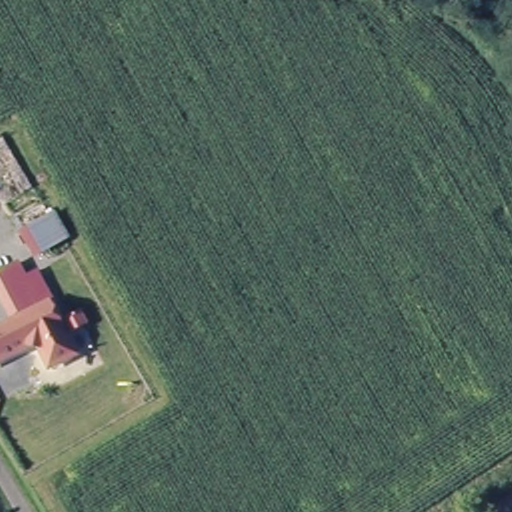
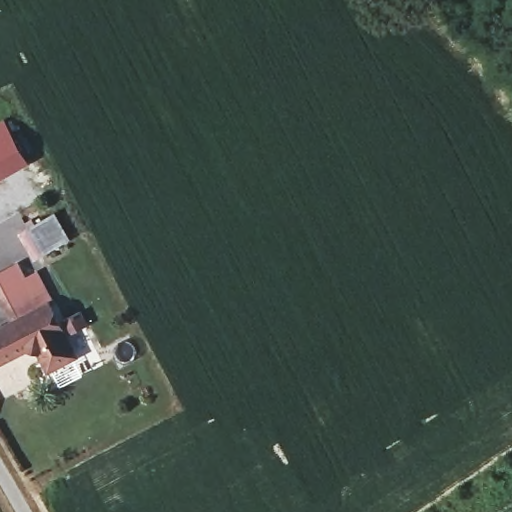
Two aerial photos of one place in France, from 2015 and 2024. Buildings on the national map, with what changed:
new [(27,165),(0,180),(0,125),(4,122),(27,165)]
unchanged [(55,212),(70,238),(33,259),(18,232),(55,212)]
unchanged [(0,303),(0,271),(18,261),(25,275),(37,270),(50,302),(10,322),(0,303)]
unchanged [(50,367),(39,347),(29,344),(0,359),(0,328),(50,302),(76,353),(50,367)]

